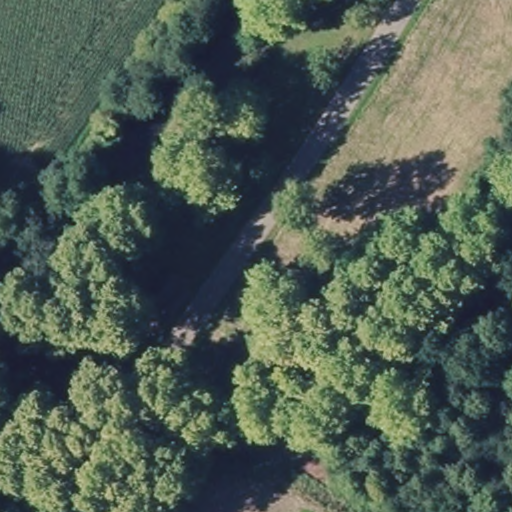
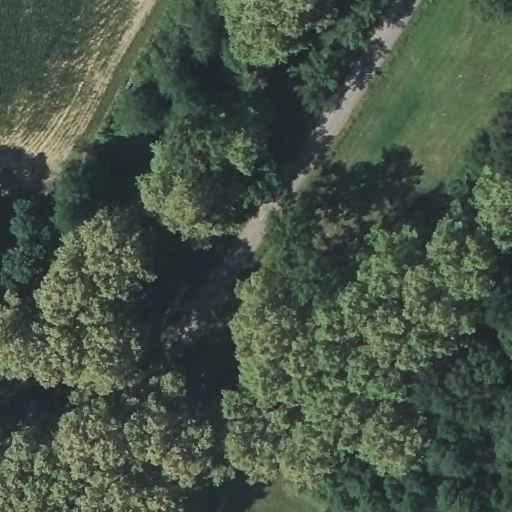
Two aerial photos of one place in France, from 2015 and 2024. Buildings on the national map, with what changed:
unchanged [(182,290),(155,328),(133,312),(160,273),(182,290)]

